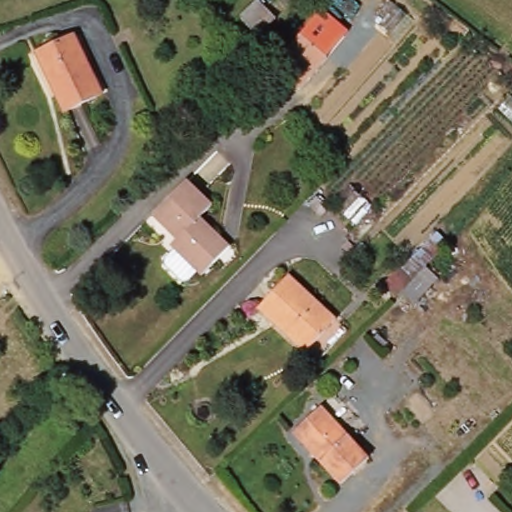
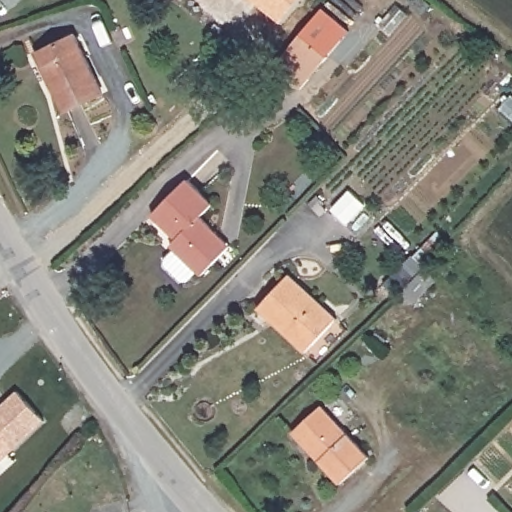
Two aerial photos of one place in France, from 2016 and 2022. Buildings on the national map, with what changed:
new [(258,0),(276,19),(258,36),(239,17),(258,0)]
unchanged [(299,94),(269,66),(296,29),(329,55),(299,94)]
unchanged [(106,94),(68,111),(41,51),(79,34),(106,94)]
unchanged [(175,240),(149,215),(185,180),(209,204),(198,216),(229,245),(199,276),(169,247),(175,240)]
unchanged [(289,272),(339,320),(308,352),(259,305),(289,272)]
new [(44,420),(0,462),(0,406),(16,391),(44,420)]
unchanged [(372,453),(339,482),(293,432),(322,403),(372,453)]

